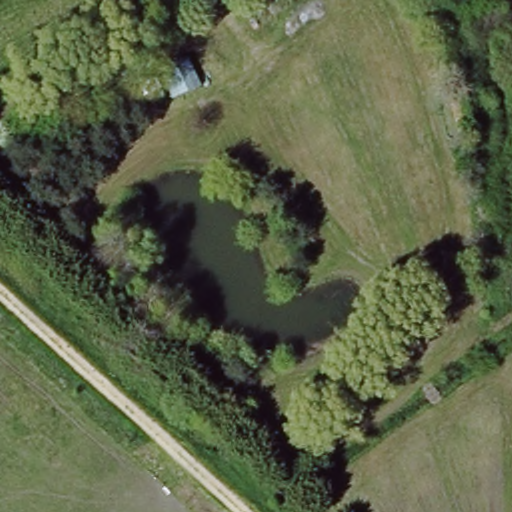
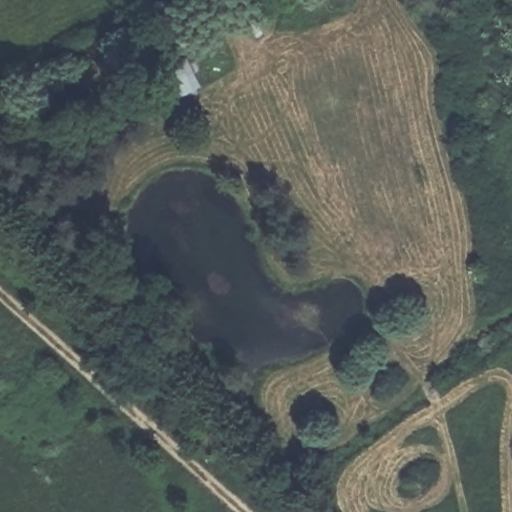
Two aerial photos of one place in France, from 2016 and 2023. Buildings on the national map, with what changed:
unchanged [(193,57),(206,92),(172,102),(160,71),(193,57)]

